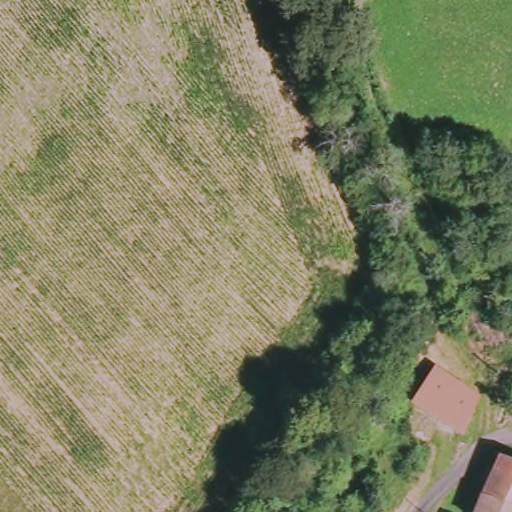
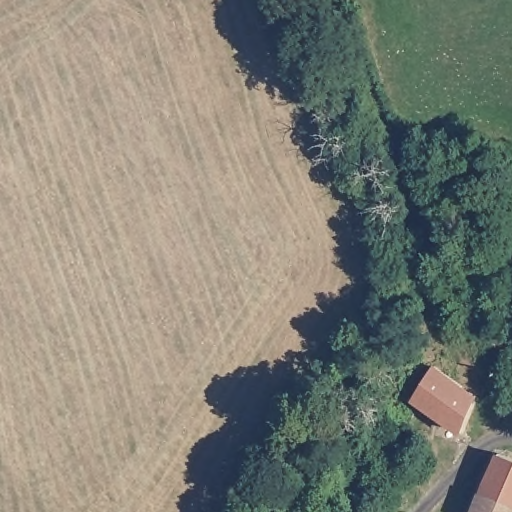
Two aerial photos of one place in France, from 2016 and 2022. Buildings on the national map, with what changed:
unchanged [(472,436),(419,406),(440,371),(485,397),(472,436)]
unchanged [(512,459),(512,512),(476,512),(500,453),(512,459)]

